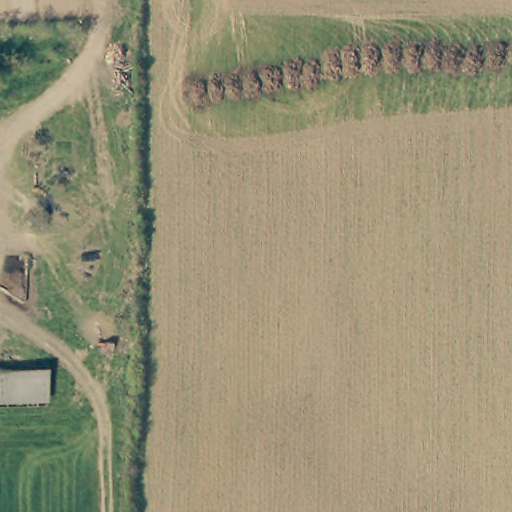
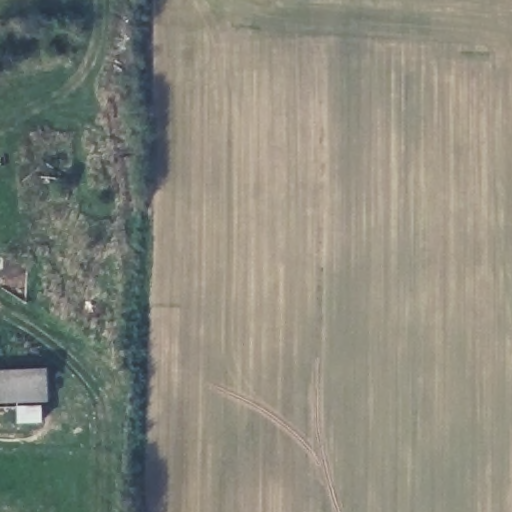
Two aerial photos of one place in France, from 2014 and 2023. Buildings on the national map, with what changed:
unchanged [(0,408),(0,373),(45,375),(44,409),(0,408)]

